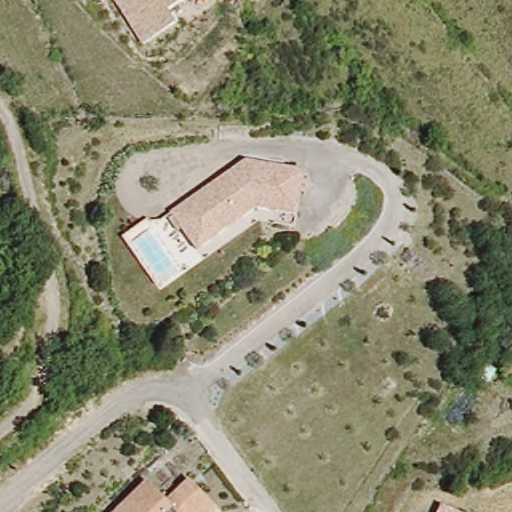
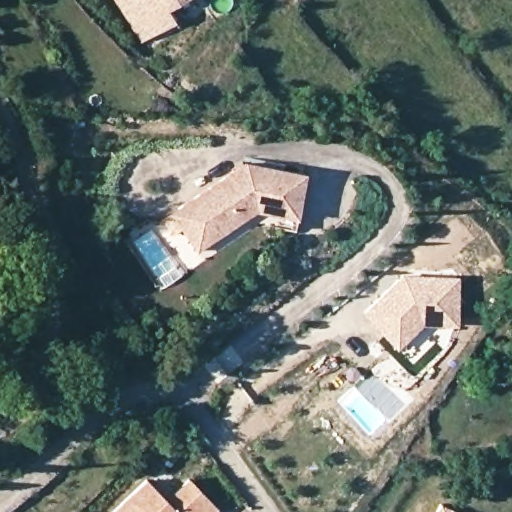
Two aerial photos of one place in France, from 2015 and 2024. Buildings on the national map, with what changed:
unchanged [(185,0),(165,14),(171,25),(142,41),(117,0),(185,0)]
unchanged [(195,246),(170,208),(246,160),(306,172),(301,195),(281,190),(276,212),(275,212),(255,208),(195,246)]
unchanged [(301,195),(294,227),(273,224),(275,212),(281,190),(301,195)]
new [(400,273),(458,275),(457,325),(437,323),(437,310),(425,310),(424,323),(424,324),(395,349),(360,312),(400,273)]
unchanged [(148,478),(169,500),(191,479),(216,507),(211,512),(109,512),(148,478)]
unchanged [(441,507),(442,506),(455,512),(439,512),(441,507)]

